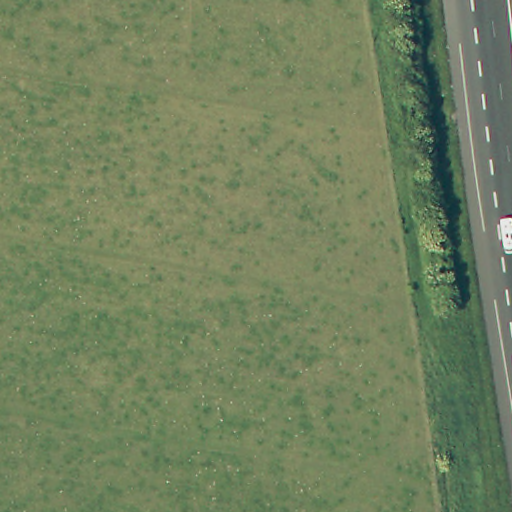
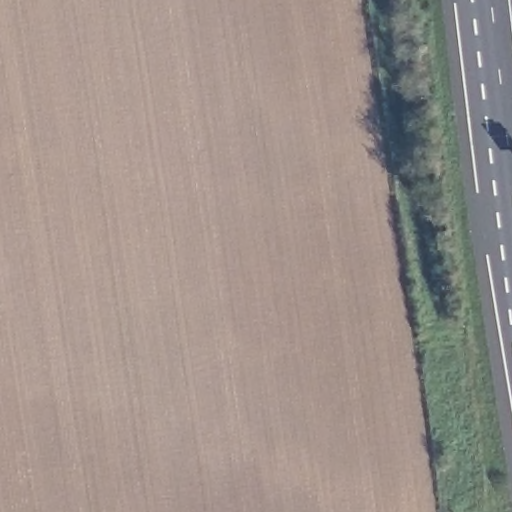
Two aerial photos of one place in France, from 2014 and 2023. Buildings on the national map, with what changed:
[]

